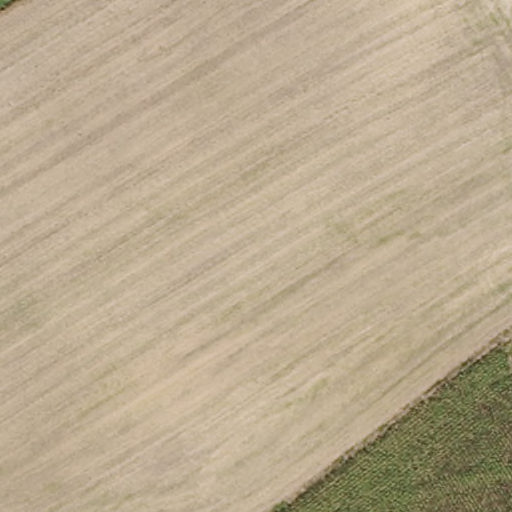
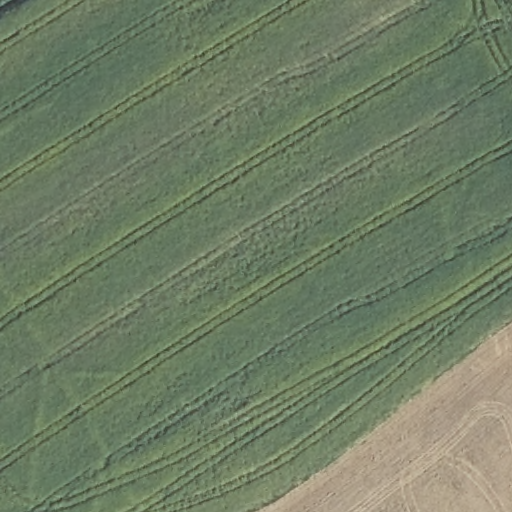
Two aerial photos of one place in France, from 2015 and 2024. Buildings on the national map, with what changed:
[]

